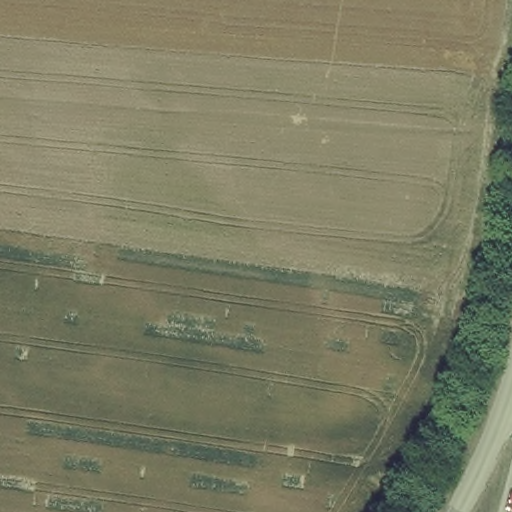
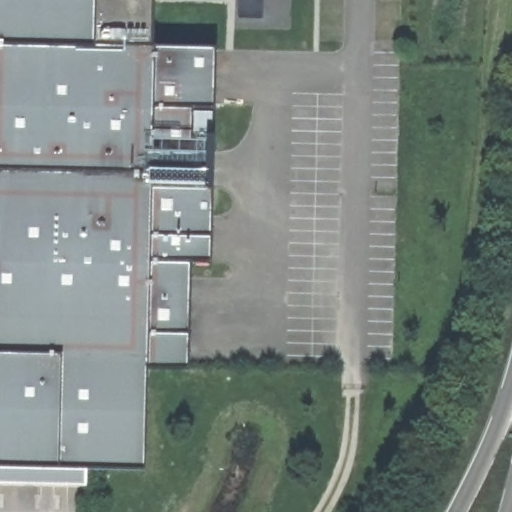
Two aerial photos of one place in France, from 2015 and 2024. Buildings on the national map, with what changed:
new [(154,46),(217,48),(212,263),(192,264),(189,370),(145,370),(144,472),(88,470),(86,486),(0,483),(0,0),(154,0),(154,46)]
new [(238,0),(263,0),(263,19),(238,19),(238,0)]

